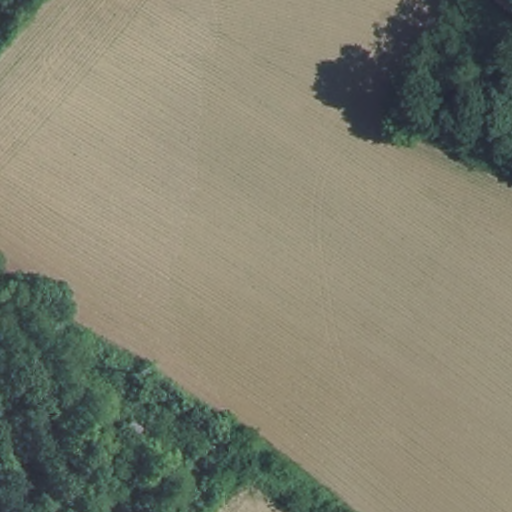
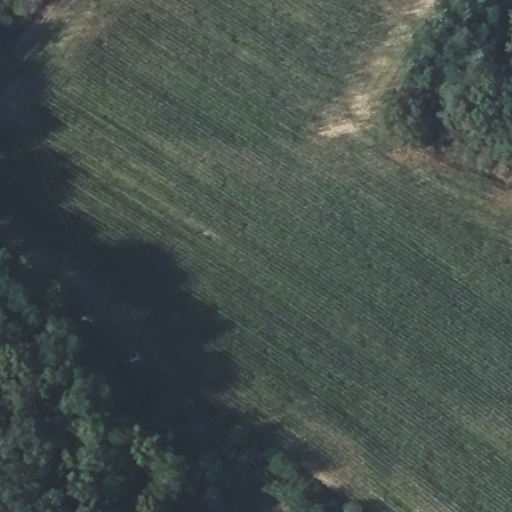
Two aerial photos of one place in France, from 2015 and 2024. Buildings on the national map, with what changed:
unchanged [(135,416),(147,426),(137,438),(124,427),(135,416)]

